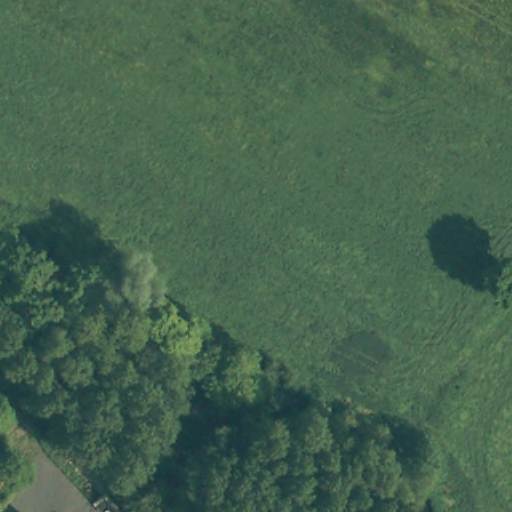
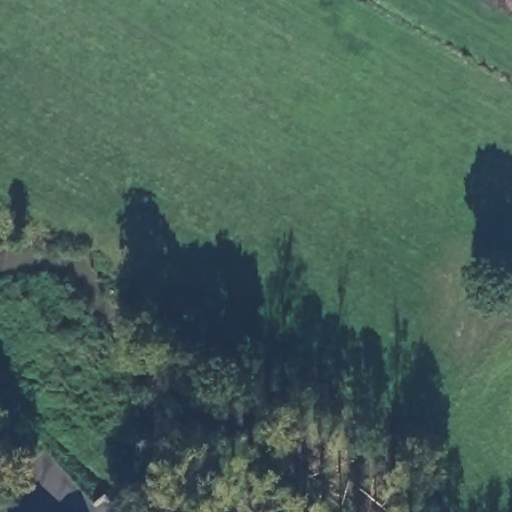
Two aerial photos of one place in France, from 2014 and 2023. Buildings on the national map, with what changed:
unchanged [(30,512),(27,512),(30,510),(30,512)]

